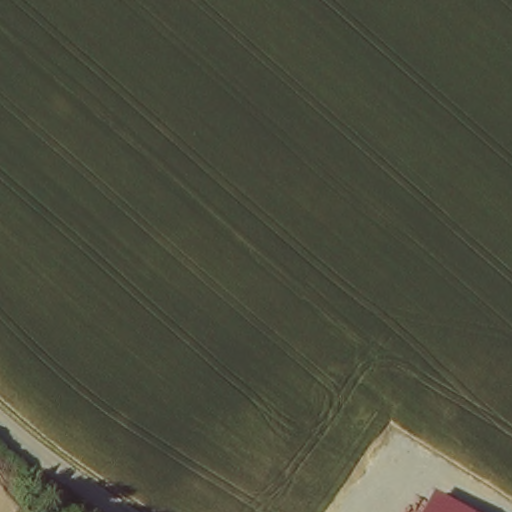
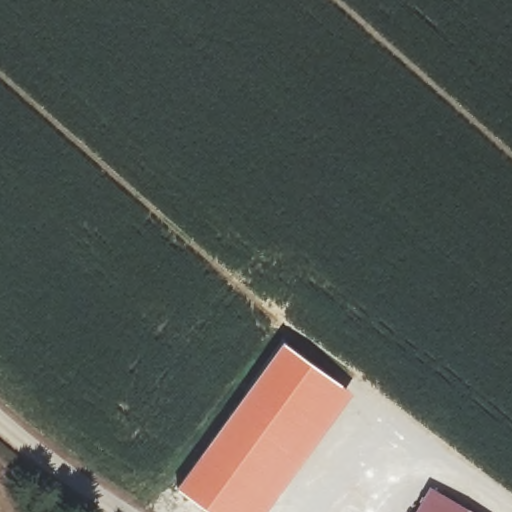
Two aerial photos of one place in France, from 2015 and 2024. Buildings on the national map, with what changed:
new [(209,512),(178,488),(285,343),(355,392),(268,512),(209,512)]
unchanged [(469,512),(417,512),(429,490),(469,512)]

